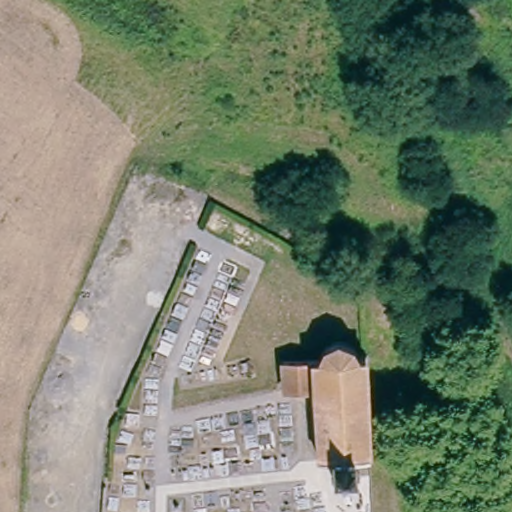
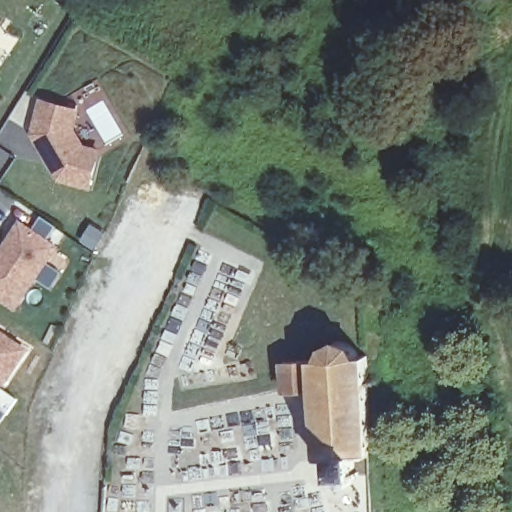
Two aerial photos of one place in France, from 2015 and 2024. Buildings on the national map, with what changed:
new [(82,109),(77,127),(87,146),(102,149),(92,189),(59,181),(30,134),(40,98),(82,109)]
new [(0,302),(0,254),(20,225),(58,250),(17,314),(0,302)]
unchanged [(371,449),(356,449),(355,460),(360,462),(360,469),(353,470),(349,478),(347,481),(342,481),(339,480),(337,478),(335,474),(327,470),(327,461),(333,459),(333,450),(313,449),(308,386),(283,389),(280,358),(317,353),(322,343),(328,336),(337,334),(346,336),(352,341),(357,349),(367,350),(371,449)]
new [(5,385),(0,382),(0,336),(27,354),(5,385)]

